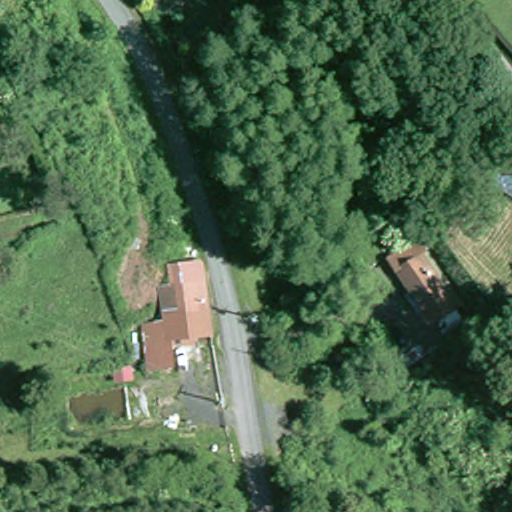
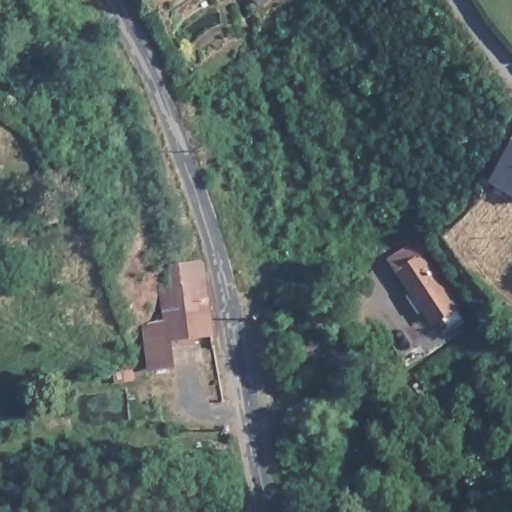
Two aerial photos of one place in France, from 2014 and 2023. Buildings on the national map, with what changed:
new [(512,140),(512,194),(489,181),(512,140)]
unchanged [(443,294),(452,312),(457,323),(445,330),(440,320),(433,324),(411,295),(408,297),(394,276),(385,262),(413,245),(422,260),(433,276),(443,294)]
unchanged [(172,360),(153,362),(152,349),(150,337),(147,322),(162,320),(160,301),(177,298),(172,272),(171,267),(200,260),(202,268),(215,327),(198,330),(200,337),(188,340),(186,331),(167,334),(170,352),(172,360)]
unchanged [(420,345),(427,355),(407,368),(400,358),(420,345)]

